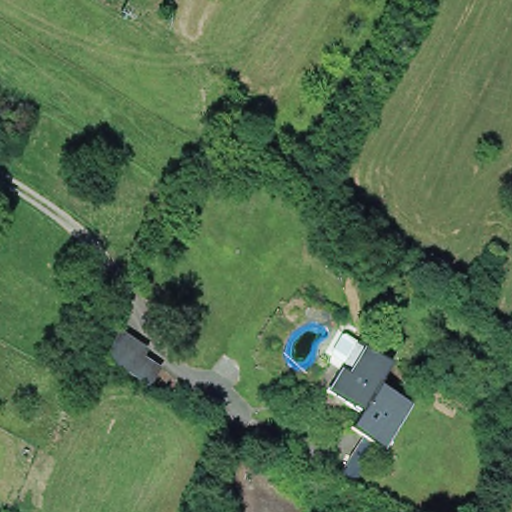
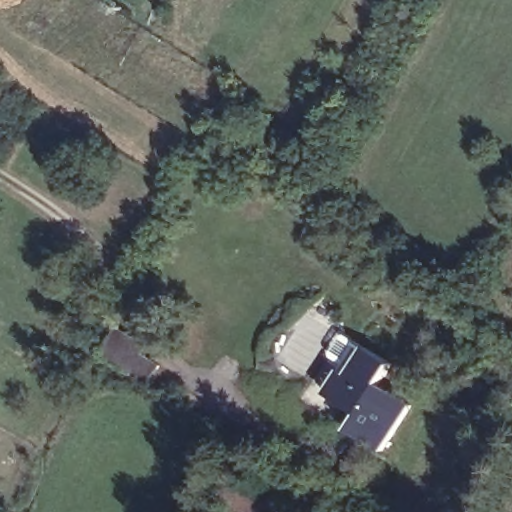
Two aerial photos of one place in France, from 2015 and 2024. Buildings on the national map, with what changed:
unchanged [(141,388),(115,371),(98,360),(110,333),(138,351),(134,359),(153,370),(141,388)]
unchanged [(364,438),(349,428),(359,413),(326,392),(356,342),(391,364),(378,384),(411,407),(383,450),(376,445),(354,478),(338,477),(364,438)]

